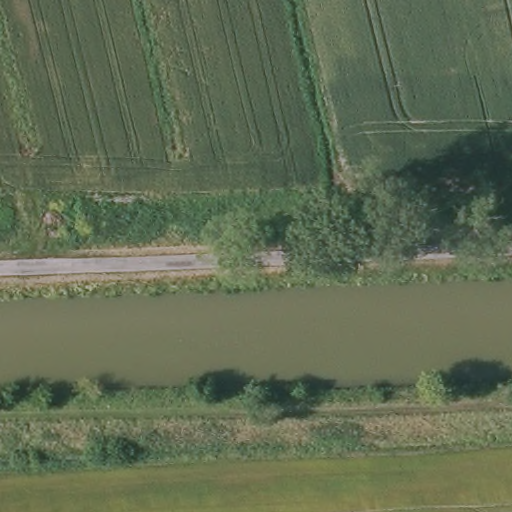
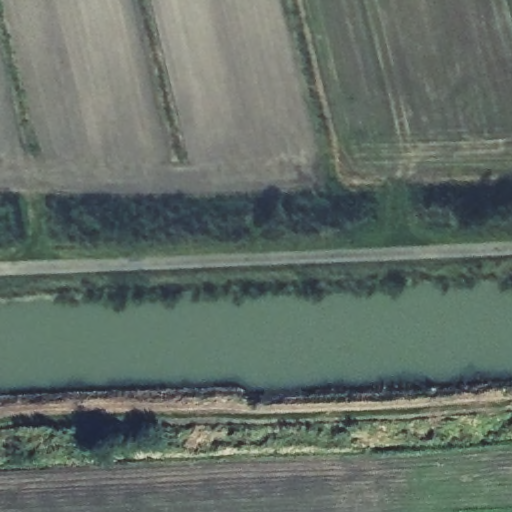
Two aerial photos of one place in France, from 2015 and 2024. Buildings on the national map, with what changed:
[]

